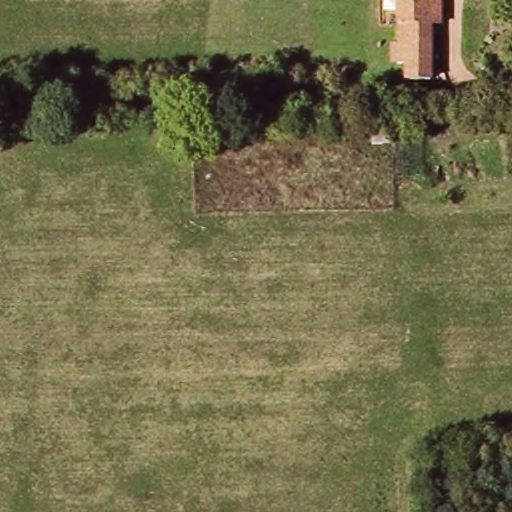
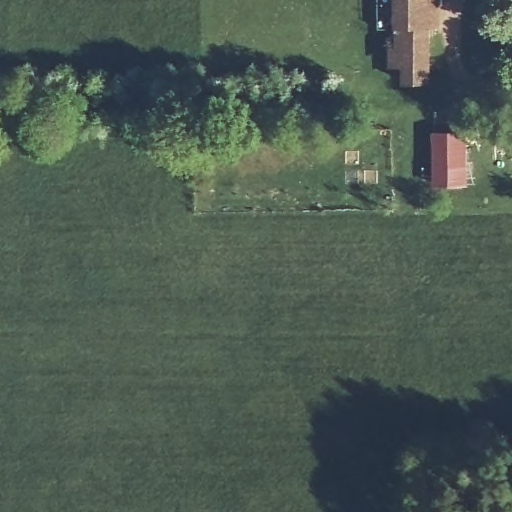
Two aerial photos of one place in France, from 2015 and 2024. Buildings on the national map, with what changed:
unchanged [(406,0),(429,0),(435,80),(411,81),(406,0)]
new [(435,133),(467,133),(470,185),(434,186),(435,133)]

